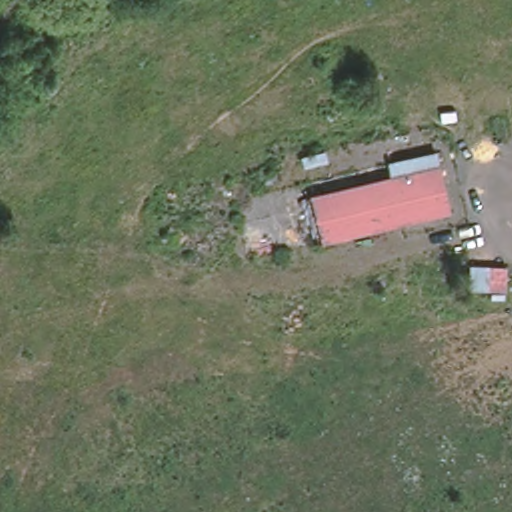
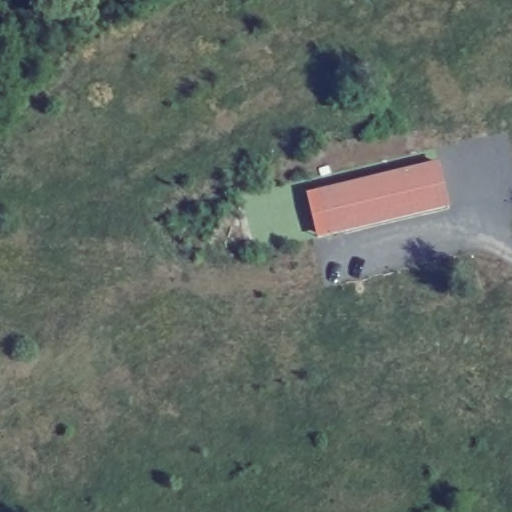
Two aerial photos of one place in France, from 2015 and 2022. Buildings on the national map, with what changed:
unchanged [(323,239),(309,189),(389,170),(387,156),(436,145),(438,159),(450,208),(323,239)]

